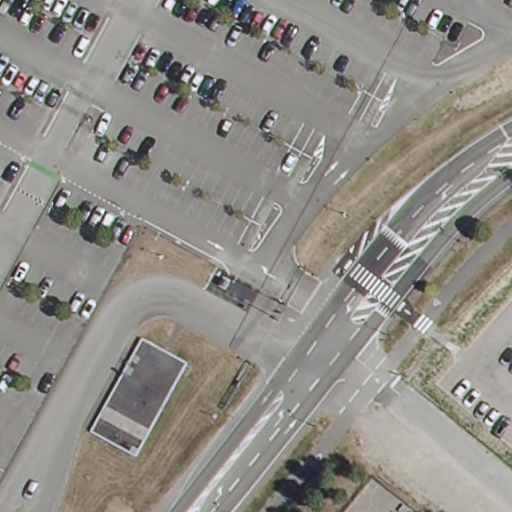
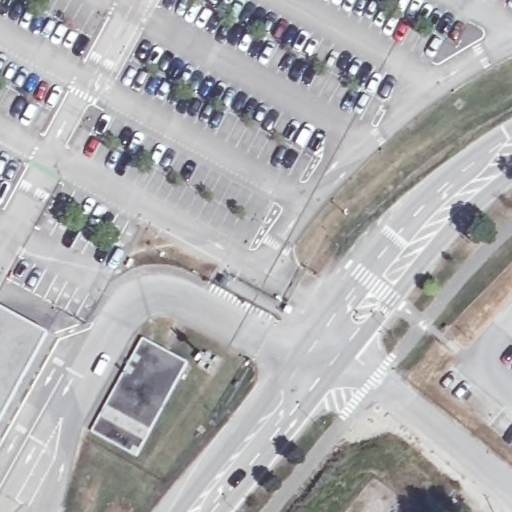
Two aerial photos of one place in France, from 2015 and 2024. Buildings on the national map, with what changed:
new [(47,332),(0,417),(0,306),(47,332)]
unchanged [(137,456),(91,431),(142,338),(187,363),(137,456)]

